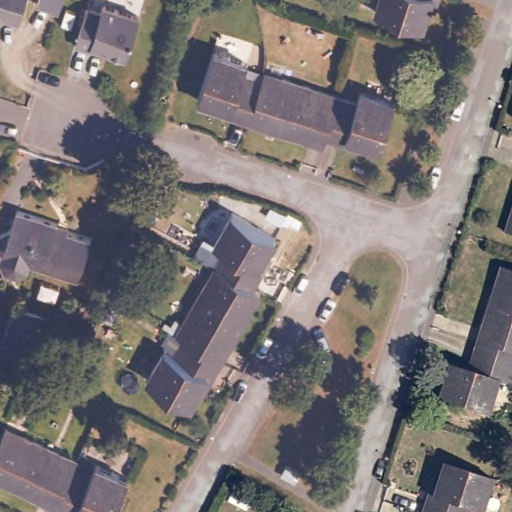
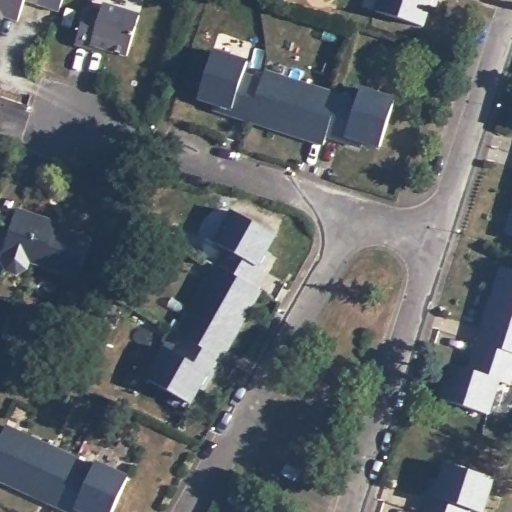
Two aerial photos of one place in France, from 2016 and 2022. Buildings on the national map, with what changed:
unchanged [(5,23),(0,21),(0,0),(27,0),(19,22),(7,18),(5,23)]
unchanged [(36,0),(60,0),(57,8),(35,1),(36,0)]
unchanged [(377,0),(435,0),(433,7),(427,6),(419,26),(374,10),(377,0)]
unchanged [(118,50),(116,52),(85,43),(96,6),(110,10),(112,4),(148,16),(135,56),(118,50)]
unchanged [(214,111),(214,107),(200,100),(217,51),(247,63),(245,73),(264,80),(268,72),(356,105),(361,91),(392,103),(378,150),(366,146),(362,152),(327,141),(325,147),(214,111)]
unchanged [(5,117),(0,133),(0,115),(5,117)]
unchanged [(512,199),(512,232),(502,230),(512,199)]
unchanged [(34,263),(30,272),(19,276),(9,272),(5,261),(6,251),(1,242),(7,228),(14,227),(21,207),(61,221),(59,225),(95,237),(80,280),(34,263)]
unchanged [(144,385),(162,353),(174,359),(182,344),(176,340),(219,257),(212,252),(229,220),(269,242),(261,258),(264,262),(247,292),(254,296),(197,398),(193,397),(186,409),(144,385)]
unchanged [(512,349),(509,348),(502,373),(493,372),(482,405),(435,392),(448,359),(464,363),(497,262),(512,267),(512,349)]
unchanged [(3,345),(15,308),(47,321),(36,356),(3,345)]
unchanged [(108,512),(73,512),(0,478),(0,423),(72,457),(74,452),(123,475),(108,512)]
unchanged [(429,480),(435,480),(442,464),(486,477),(476,510),(466,507),(465,512),(419,512),(429,480)]

